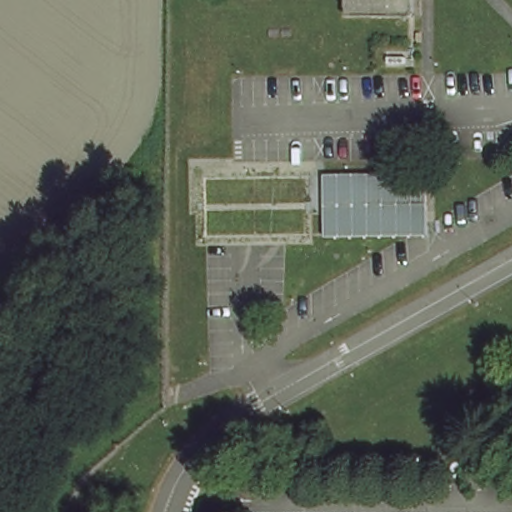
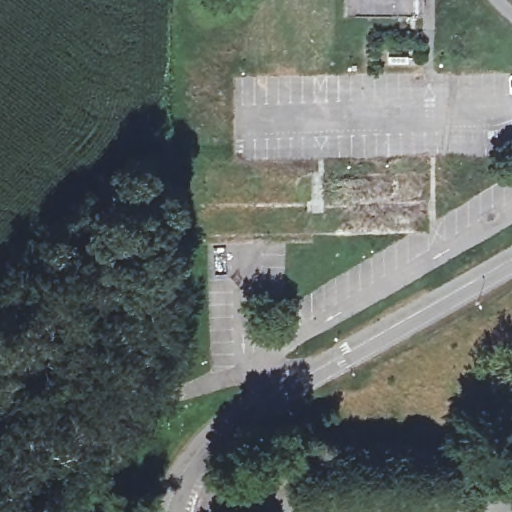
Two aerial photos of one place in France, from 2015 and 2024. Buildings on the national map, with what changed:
unchanged [(425,21),(348,18),(349,0),(425,0),(425,21)]
demolished [(322,240),(322,171),(430,172),(427,239),(322,240)]

